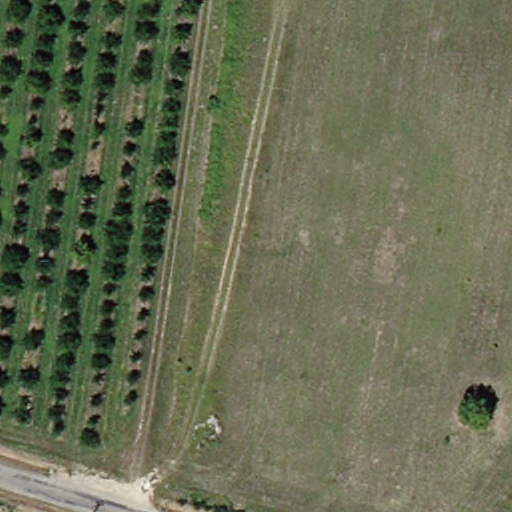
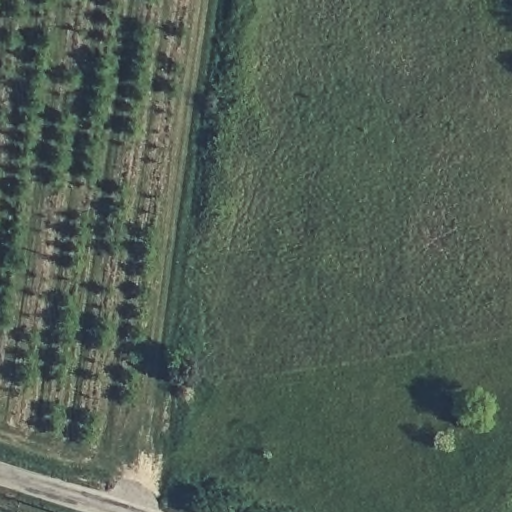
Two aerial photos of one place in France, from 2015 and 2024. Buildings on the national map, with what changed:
[]

